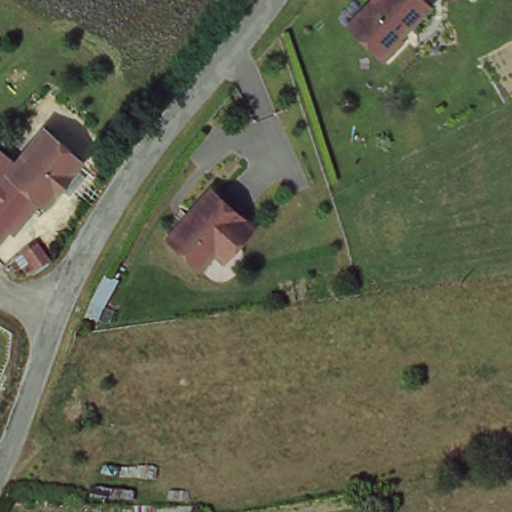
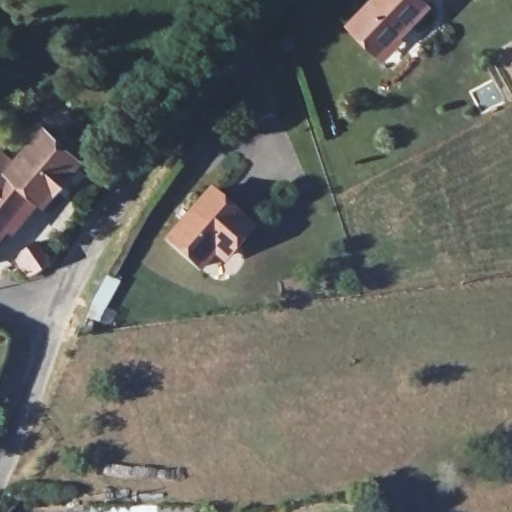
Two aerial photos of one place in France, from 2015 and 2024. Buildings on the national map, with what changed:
unchanged [(361,32),(390,0),(423,0),(437,14),(405,47),(393,61),(385,54),(361,32)]
unchanged [(90,169),(50,211),(37,201),(0,240),(0,195),(25,169),(56,136),(90,169)]
unchanged [(0,146),(25,169),(0,195),(0,146)]
unchanged [(220,258),(206,275),(172,247),(215,197),(255,232),(241,249),(228,265),(220,258)]
unchanged [(18,258),(25,254),(22,249),(39,238),(46,251),(24,267),(18,258)]
unchanged [(95,307),(105,312),(99,327),(87,321),(95,307)]

